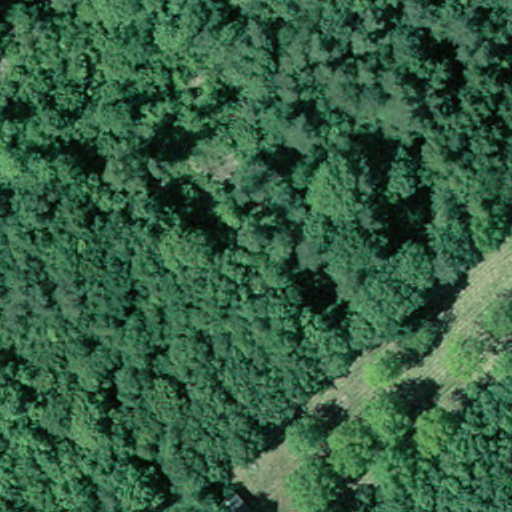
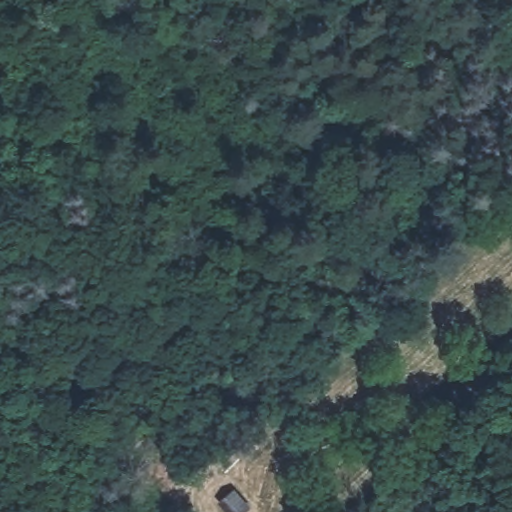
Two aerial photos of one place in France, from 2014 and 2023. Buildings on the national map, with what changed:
unchanged [(229,482),(250,504),(241,512),(225,512),(210,497),(229,482)]

